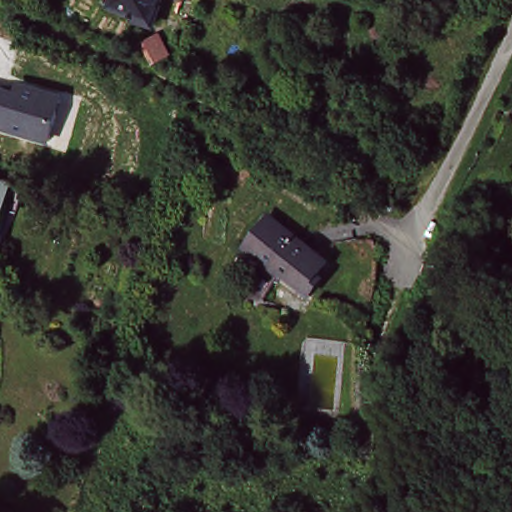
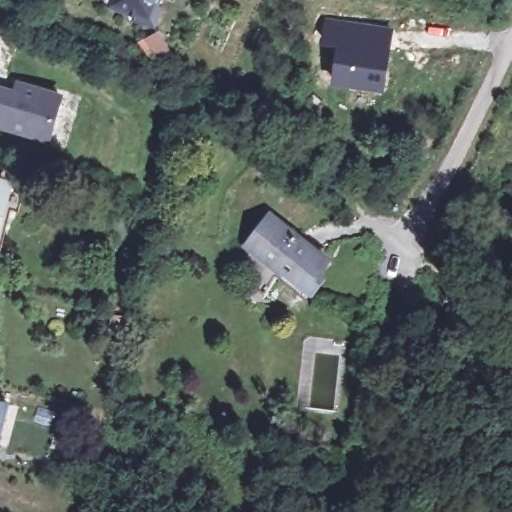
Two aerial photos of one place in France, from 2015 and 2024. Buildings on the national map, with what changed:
unchanged [(160,7),(155,22),(137,17),(137,10),(113,4),(114,0),(152,0),(151,5),(160,7)]
new [(395,35),(392,54),(386,92),(337,85),(342,46),(326,44),(330,25),(363,30),(395,35)]
unchanged [(17,100),(20,91),(64,104),(51,147),(0,132),(0,96),(17,100)]
unchanged [(17,184),(0,230),(0,177),(17,184)]
unchanged [(333,265),(310,294),(246,245),(270,217),(333,265)]
new [(16,402),(5,451),(0,450),(0,399),(16,402)]

